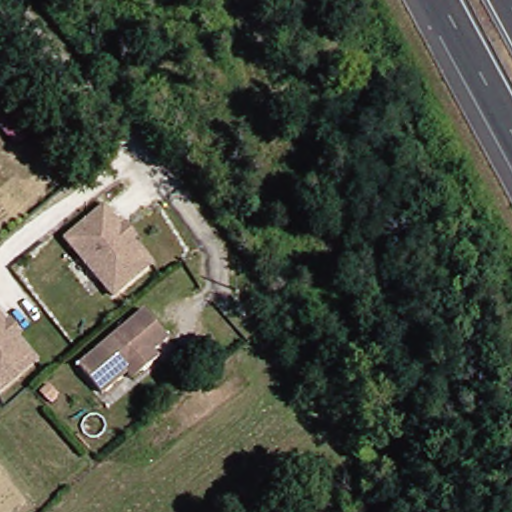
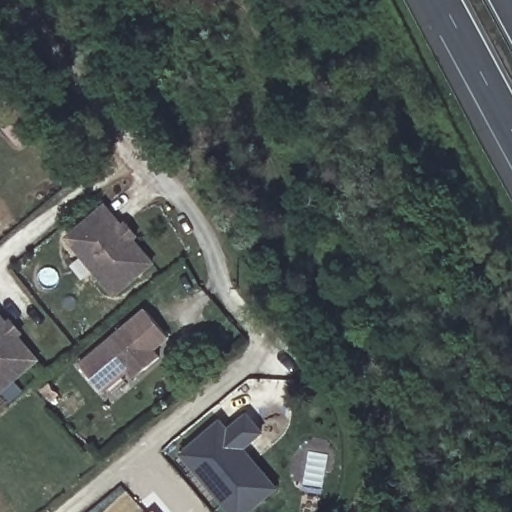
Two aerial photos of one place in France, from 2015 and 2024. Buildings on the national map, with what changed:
unchanged [(123,227),(128,223),(138,235),(134,239),(153,263),(115,295),(67,238),(106,206),(123,227)]
unchanged [(169,338),(154,351),(159,358),(134,378),(128,372),(101,393),(79,366),(145,310),(169,338)]
unchanged [(22,333),(18,336),(38,360),(0,392),(0,316),(8,324),(12,320),(22,333)]
new [(220,423),(228,432),(223,436),(228,432),(247,416),(262,433),(243,449),(239,453),(260,479),(227,508),(182,455),(216,427),(220,423)]
new [(260,479),(239,453),(243,449),(276,489),(249,512),(230,512),(227,508),(260,479)]
new [(155,511),(155,512),(153,512),(155,511)]

